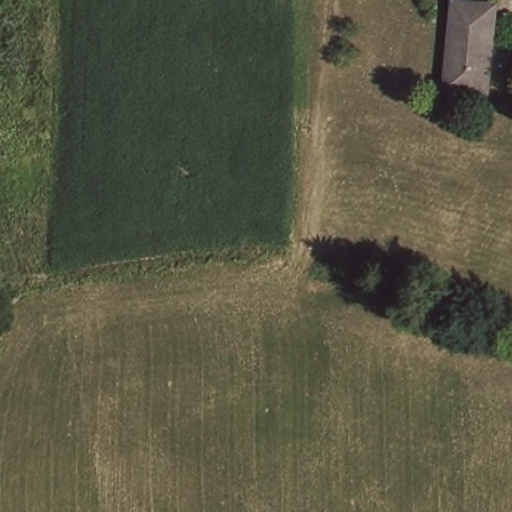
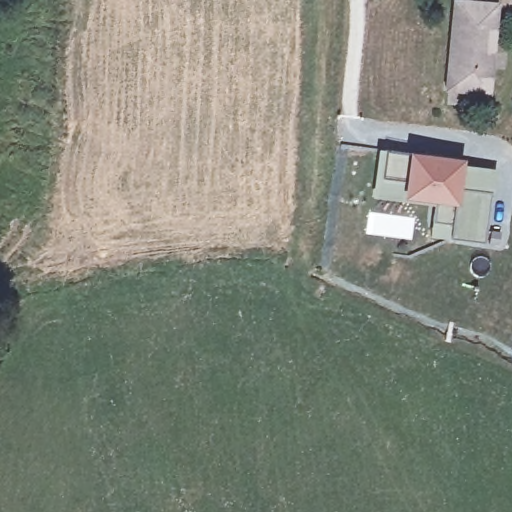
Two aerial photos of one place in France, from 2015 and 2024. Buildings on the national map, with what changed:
unchanged [(500,4),(492,86),(452,82),(460,0),(500,4)]
new [(433,204),(377,197),(379,180),(382,152),(447,159),(458,160),(457,170),(491,174),(489,190),(483,242),(449,239),(430,236),(432,222),(433,204)]

